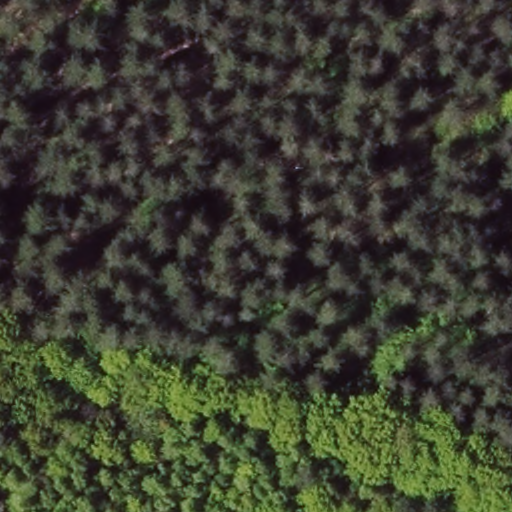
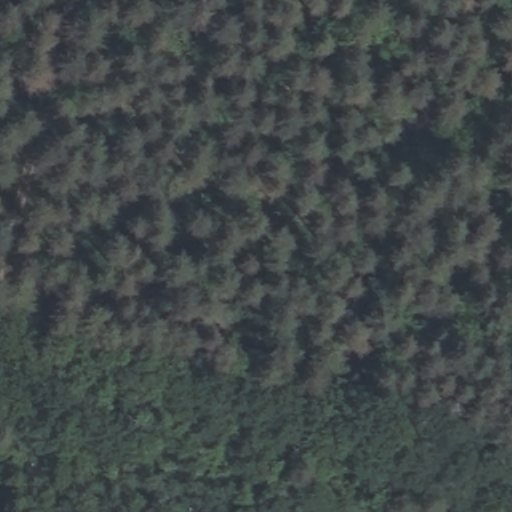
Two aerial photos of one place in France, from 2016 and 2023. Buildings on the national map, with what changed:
[]

